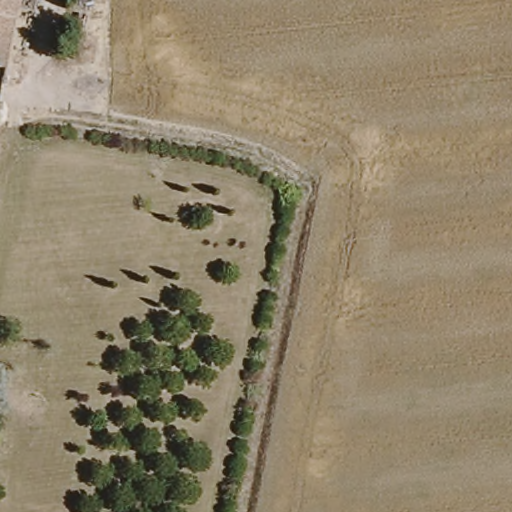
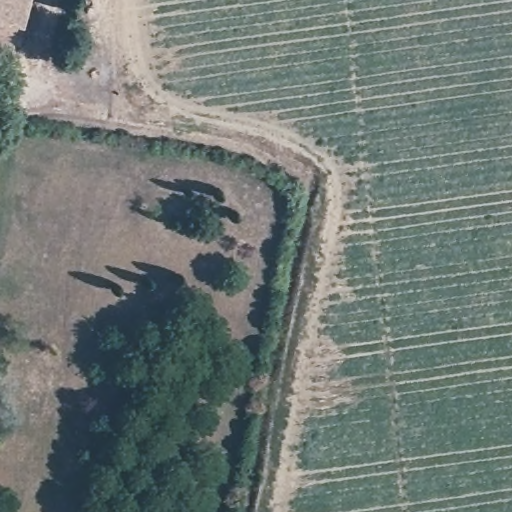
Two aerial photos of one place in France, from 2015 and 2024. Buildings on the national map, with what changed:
unchanged [(0,88),(0,0),(25,0),(9,90),(0,88)]

